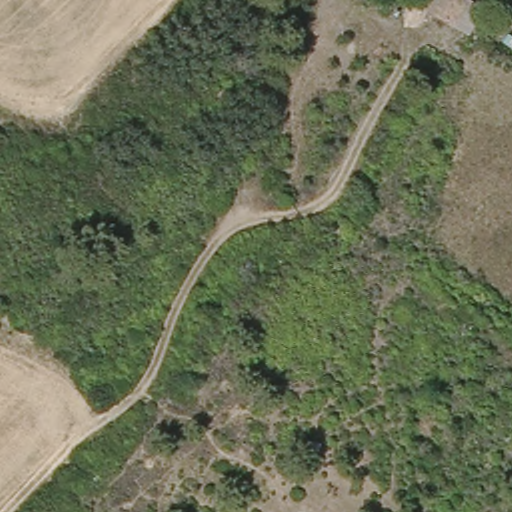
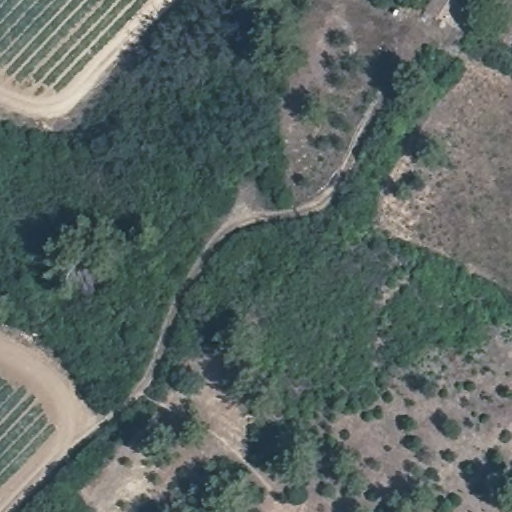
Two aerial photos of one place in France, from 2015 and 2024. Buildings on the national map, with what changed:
unchanged [(443,0),(477,0),(462,25),(436,10),(443,0)]

